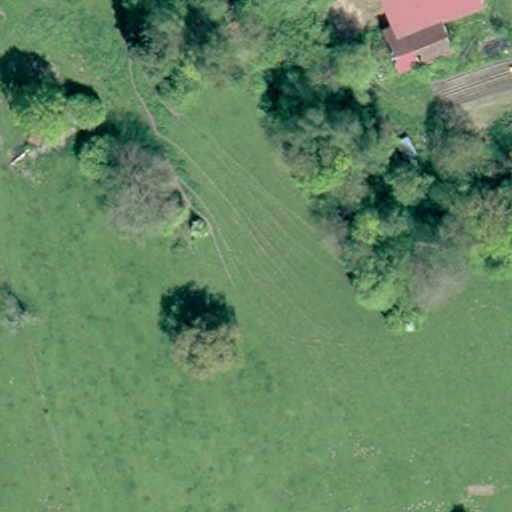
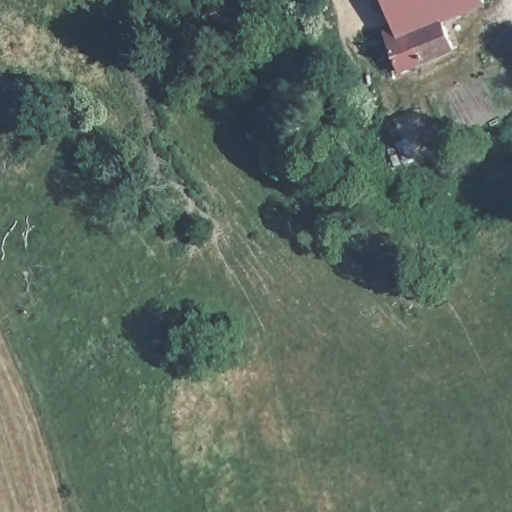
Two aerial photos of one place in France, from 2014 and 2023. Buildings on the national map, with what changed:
unchanged [(479,3),(439,18),(393,35),(380,0),(478,0),(479,3)]
unchanged [(392,69),(381,39),(393,35),(439,18),(450,49),(392,69)]

